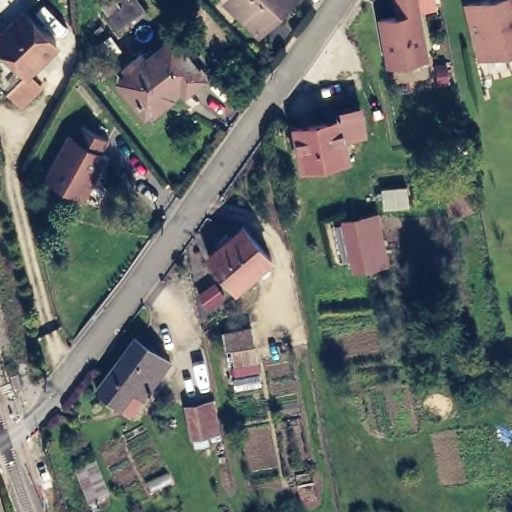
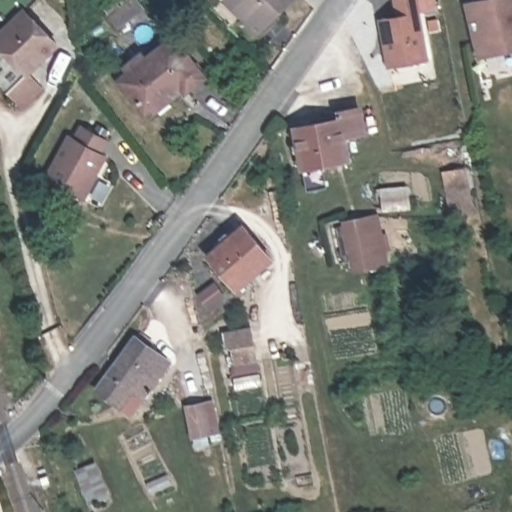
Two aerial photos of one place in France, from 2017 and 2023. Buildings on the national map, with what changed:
unchanged [(26,107),(11,92),(0,80),(0,0),(40,0),(28,11),(60,45),(30,74),(45,89),(26,107)]
unchanged [(145,5),(120,25),(102,0),(142,0),(145,5)]
unchanged [(263,27),(233,0),(288,0),(263,27)]
unchanged [(430,57),(385,67),(376,16),(392,12),(390,0),(419,0),(430,57)]
unchanged [(466,5),(487,1),(488,5),(511,0),(512,0),(512,53),(480,60),(466,5)]
unchanged [(211,81),(191,97),(187,92),(177,100),(181,105),(162,117),(158,114),(151,120),(131,93),(122,80),(150,58),(160,71),(188,49),(211,81)]
unchanged [(340,120),(340,112),(369,109),(373,135),(347,139),(352,164),(307,172),(298,127),(340,120)]
unchanged [(85,200),(48,179),(72,136),(77,139),(84,126),(111,140),(104,154),(110,156),(85,200)]
unchanged [(376,212),(386,258),(354,264),(345,217),(376,212)]
unchanged [(245,227),(274,261),(238,292),(210,257),(245,227)]
unchanged [(207,311),(195,292),(210,280),(225,300),(207,311)]
unchanged [(249,325),(251,341),(222,345),(220,328),(249,325)]
unchanged [(142,333),(156,343),(155,346),(172,358),(171,360),(175,362),(168,370),(165,368),(142,400),(130,391),(121,403),(100,387),(142,333)]
unchanged [(198,373),(196,348),(207,346),(211,371),(198,373)]
unchanged [(190,403),(207,400),(213,429),(196,432),(190,403)]
unchanged [(98,465),(110,496),(93,503),(81,472),(98,465)]

